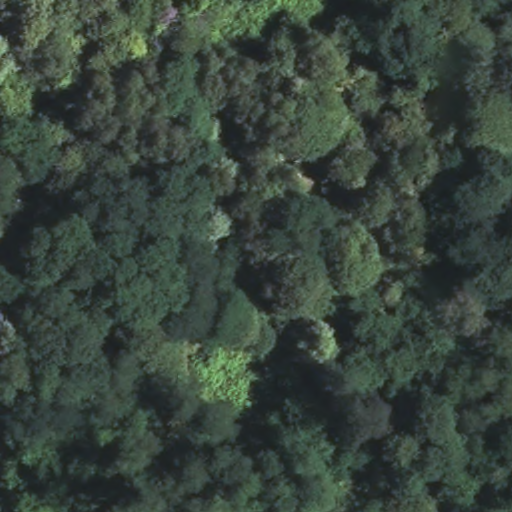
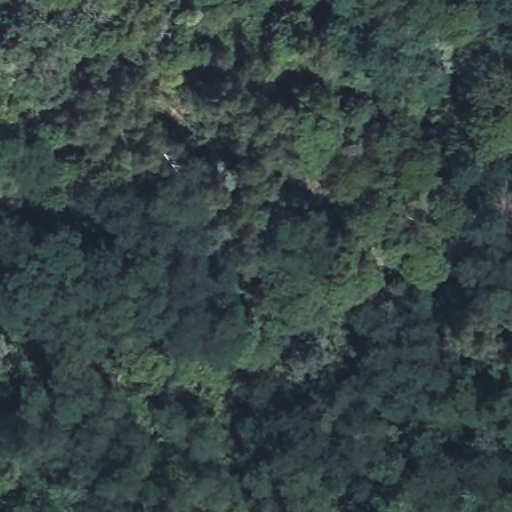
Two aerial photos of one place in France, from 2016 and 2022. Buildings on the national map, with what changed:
[]

